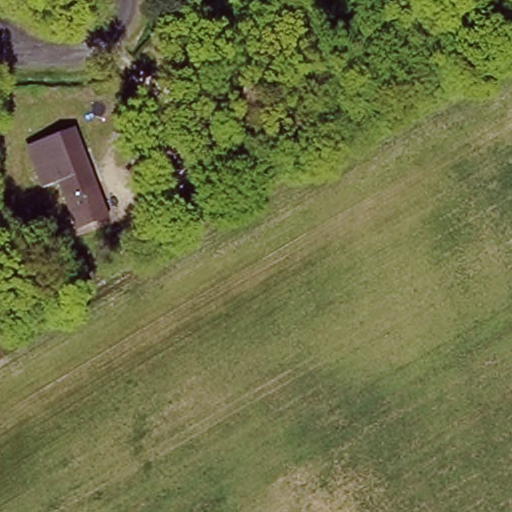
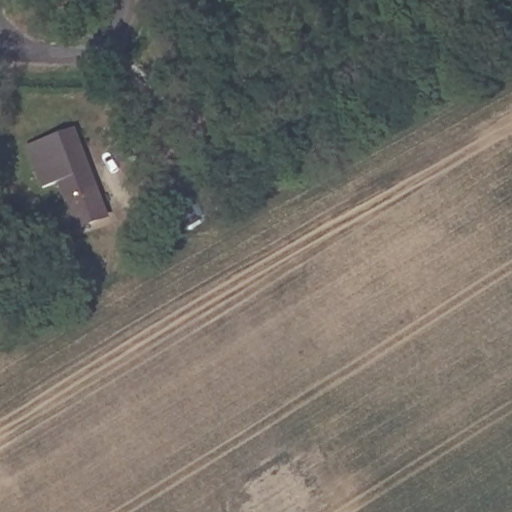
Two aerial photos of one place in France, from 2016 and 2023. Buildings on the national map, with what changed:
unchanged [(77,227),(58,182),(42,188),(27,149),(72,131),(106,216),(77,227)]

